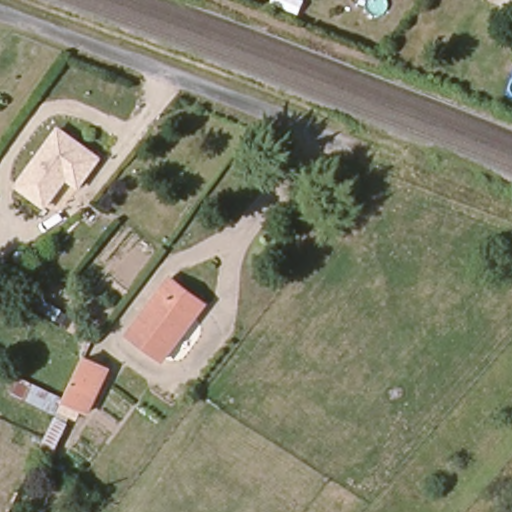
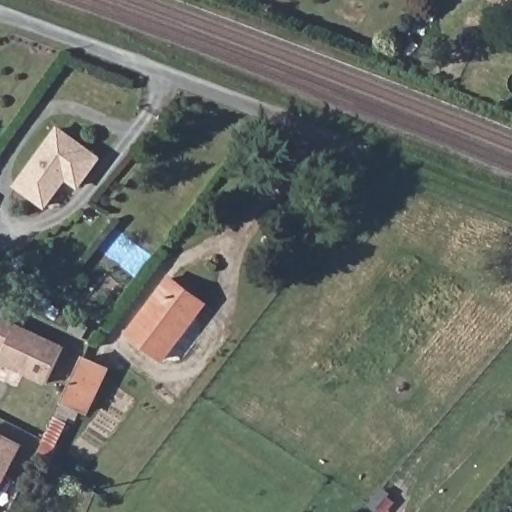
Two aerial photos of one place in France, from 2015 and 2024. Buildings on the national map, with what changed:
unchanged [(99,155),(79,184),(65,176),(43,204),(16,185),(58,126),(99,155)]
unchanged [(207,304),(165,356),(135,335),(177,281),(207,304)]
new [(42,382),(0,364),(0,356),(1,353),(0,352),(0,321),(58,346),(42,382)]
unchanged [(84,360),(106,367),(90,410),(66,402),(84,360)]
new [(0,478),(0,437),(16,444),(0,478)]

